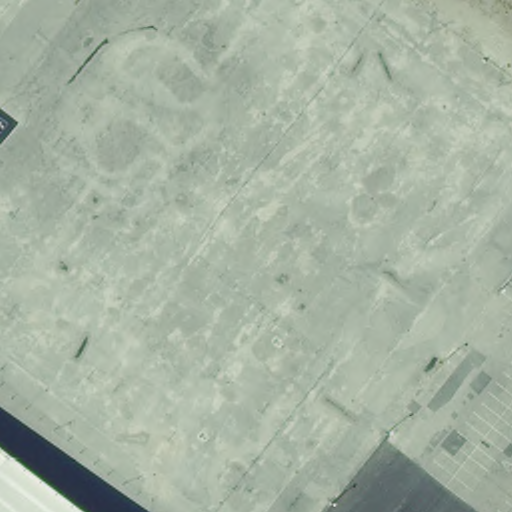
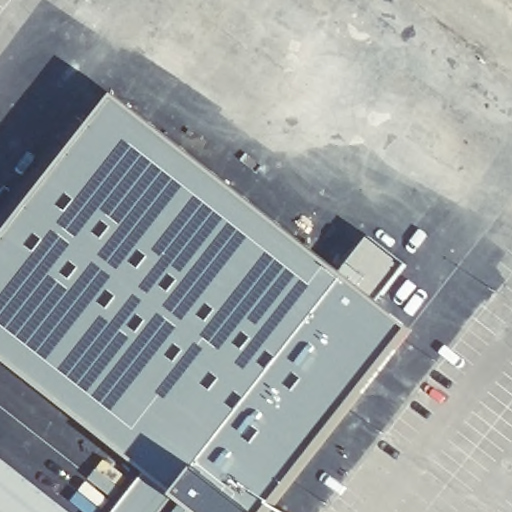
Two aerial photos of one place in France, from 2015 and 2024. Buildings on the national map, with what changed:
new [(270,504),(279,512),(193,512),(0,355),(0,249),(117,99),(402,332),(270,504)]
new [(369,240),(408,266),(378,306),(342,279),(369,240)]
unchanged [(0,468),(56,512),(0,512),(0,468)]
new [(143,476),(189,512),(117,512),(143,476)]

